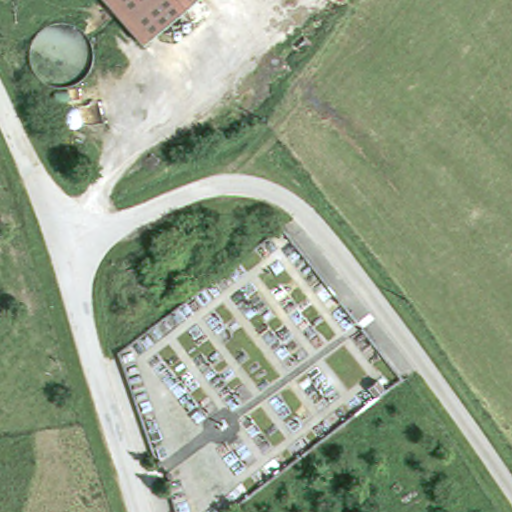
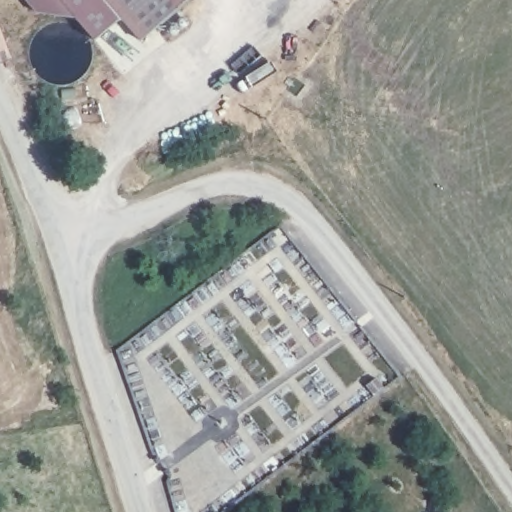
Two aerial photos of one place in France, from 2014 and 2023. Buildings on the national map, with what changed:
new [(25,0),(106,0),(123,20),(95,41),(75,18),(37,14),(25,0)]
unchanged [(191,0),(142,42),(106,0),(191,0)]

